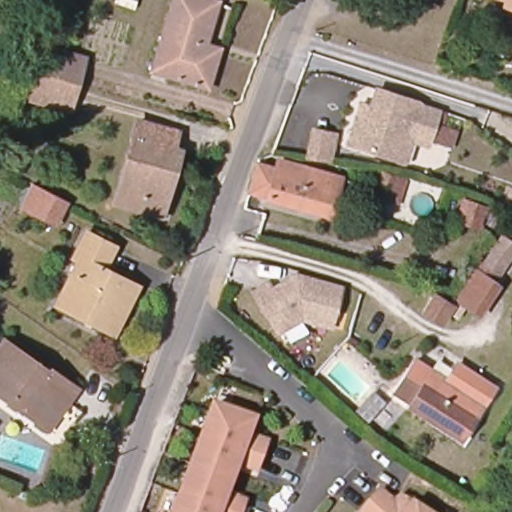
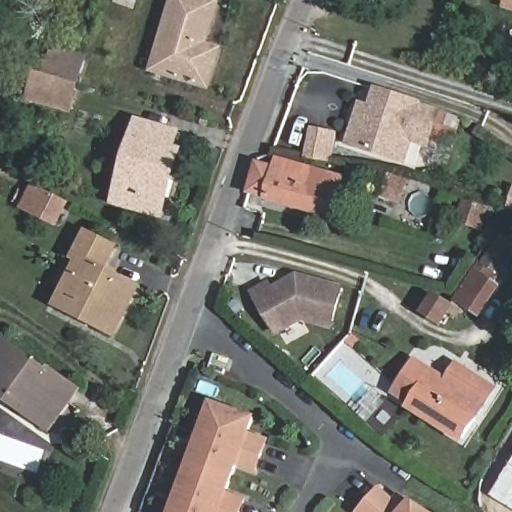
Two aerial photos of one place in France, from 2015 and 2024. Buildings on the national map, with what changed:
unchanged [(205,47),(217,51),(207,86),(153,70),(174,0),(201,0),(218,5),(205,47)]
unchanged [(29,100),(37,74),(48,76),(55,51),(84,60),(77,85),(69,111),(29,100)]
unchanged [(377,109),(372,108),(378,91),(440,113),(429,143),(416,138),(414,143),(410,141),(397,148),(393,160),(349,145),(358,118),(363,119),(375,114),(377,109)]
unchanged [(176,133),(172,151),(177,153),(160,215),(138,209),(123,206),(116,203),(138,123),(176,133)]
unchanged [(335,131),(331,161),(306,158),(312,128),(335,131)]
unchanged [(274,169),(277,161),(340,179),(330,218),(266,200),(267,198),(249,193),(257,164),(274,169)]
unchanged [(408,183),(393,229),(372,223),(387,174),(408,183)]
unchanged [(66,202),(55,226),(21,208),(32,184),(66,202)]
unchanged [(475,232),(451,224),(460,196),(487,204),(475,232)]
unchanged [(113,249),(103,270),(137,287),(113,333),(57,305),(80,261),(75,259),(87,236),(113,249)]
unchanged [(480,276),(498,287),(479,316),(455,301),(480,263),(485,267),(480,276)]
unchanged [(306,319),(282,334),(258,294),(273,285),(277,291),(301,276),(345,291),(333,328),(306,319)]
unchanged [(451,307),(440,322),(427,312),(437,298),(451,307)]
unchanged [(47,372),(49,371),(76,390),(48,430),(0,396),(0,347),(4,343),(47,372)]
unchanged [(467,371),(493,388),(460,438),(410,406),(393,395),(414,360),(433,372),(456,387),(467,371)]
unchanged [(250,417),(244,433),(263,440),(253,468),(234,462),(223,493),(242,500),(237,512),(170,512),(209,402),(250,417)]
new [(512,508),(492,496),(512,463),(512,508)]
unchanged [(378,492),(393,505),(399,498),(422,512),(361,512),(378,492)]

